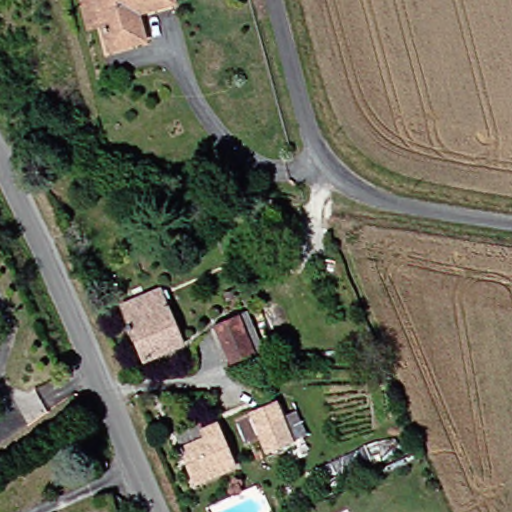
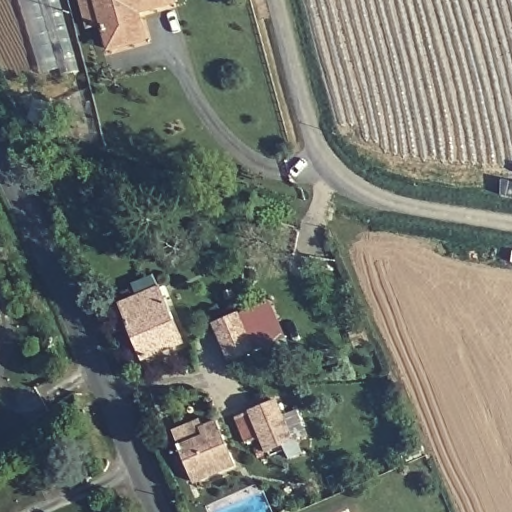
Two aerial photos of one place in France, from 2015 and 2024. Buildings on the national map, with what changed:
new [(61,0),(80,71),(63,76),(60,67),(41,73),(22,0),(61,0)]
unchanged [(112,55),(105,29),(92,31),(83,0),(181,0),(183,7),(149,16),(153,35),(154,43),(143,46),(112,55)]
unchanged [(145,360),(129,322),(123,306),(146,296),(151,306),(164,300),(182,344),(145,360)]
unchanged [(217,327),(239,316),(247,312),(263,346),(255,350),(232,361),(217,327)]
unchanged [(258,415),(283,405),(292,401),(302,425),(293,428),(299,442),(273,452),(258,415)]
unchanged [(237,469),(199,485),(184,447),(179,433),(200,425),(203,431),(219,425),(237,469)]

